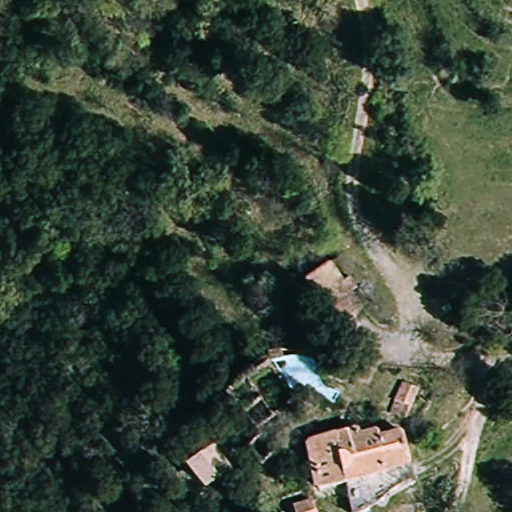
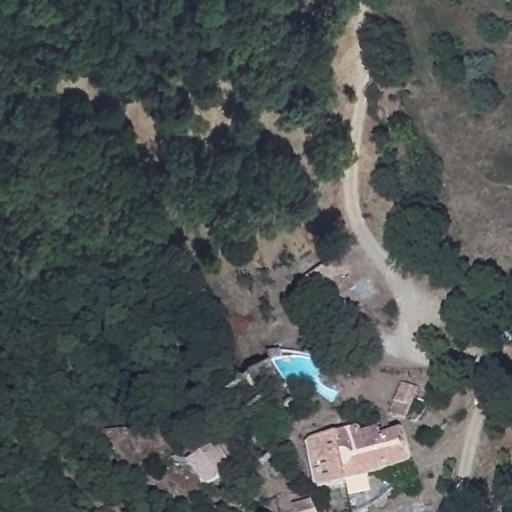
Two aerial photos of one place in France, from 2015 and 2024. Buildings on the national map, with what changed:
unchanged [(338,332),(305,278),(330,262),(363,315),(338,332)]
unchanged [(428,395),(404,428),(384,412),(408,378),(428,395)]
unchanged [(355,486),(311,486),(298,445),(294,433),(314,432),(314,439),(344,438),(376,433),(377,442),(402,437),(411,474),(401,476),(355,486)]
unchanged [(317,512),(301,512),(310,504),(317,512)]

